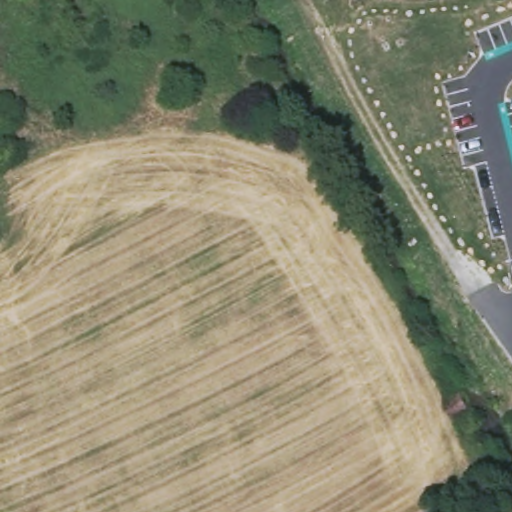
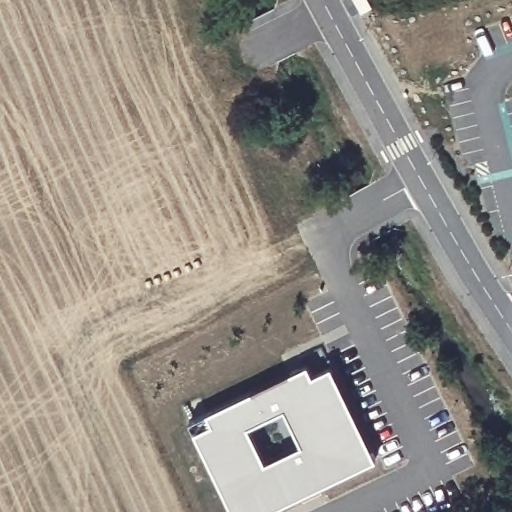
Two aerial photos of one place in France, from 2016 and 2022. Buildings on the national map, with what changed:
new [(297,494),(261,512),(229,512),(190,431),(207,422),(203,412),(303,363),(309,375),(327,366),(334,381),(371,459),(315,486),(318,492),(300,501),(297,494)]

